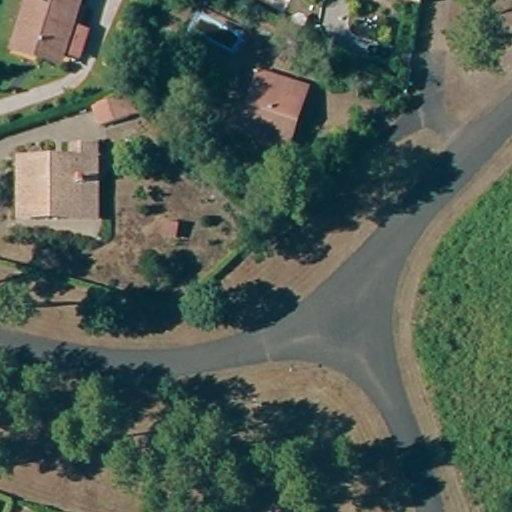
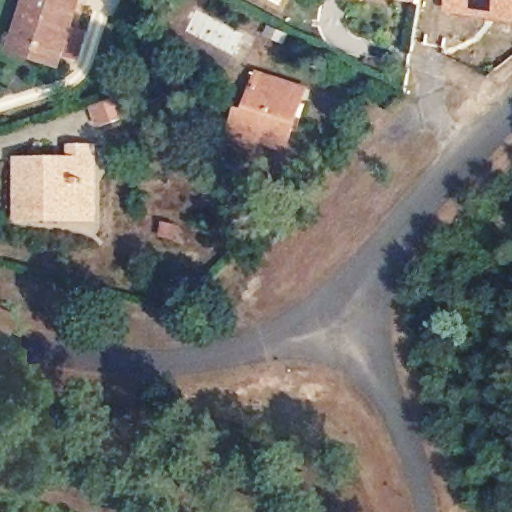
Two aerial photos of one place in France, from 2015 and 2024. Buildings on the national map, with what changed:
unchanged [(10,49),(12,42),(25,0),(74,0),(73,3),(66,24),(76,27),(81,29),(73,58),(57,53),(56,56),(54,63),(10,49)]
unchanged [(397,0),(420,0),(419,4),(397,0)]
new [(449,12),(450,0),(512,0),(512,21),(449,12)]
unchanged [(254,78),(306,93),(291,134),(283,131),(290,103),(249,92),(254,78)]
unchanged [(231,139),(233,133),(238,116),(242,117),(249,92),(290,103),(283,131),(291,134),(285,150),(284,155),(231,139)]
unchanged [(118,100),(120,103),(124,119),(99,127),(93,109),(118,100)]
unchanged [(15,217),(15,169),(64,168),(64,154),(89,156),(89,189),(88,227),(75,227),(15,226),(15,217)]

